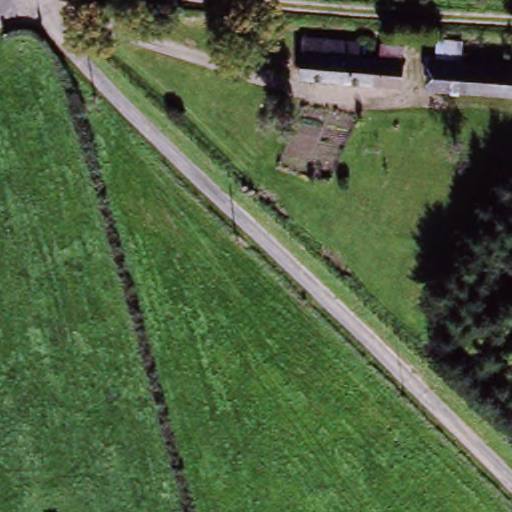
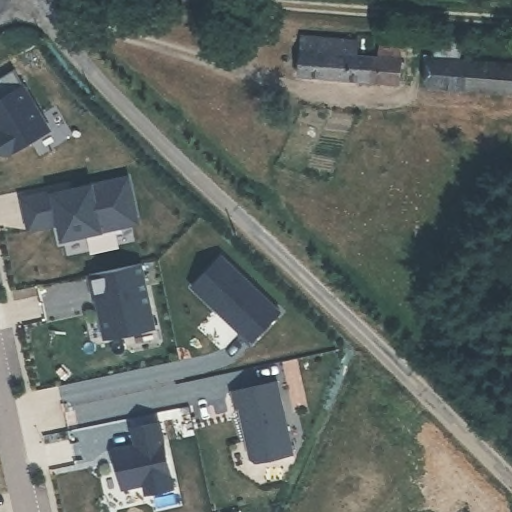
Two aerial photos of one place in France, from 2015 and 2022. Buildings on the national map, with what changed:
unchanged [(300,75),(305,38),(356,43),(355,55),(404,60),(402,85),(300,75)]
unchanged [(423,66),(424,54),(432,55),(433,60),(512,66),(512,92),(430,86),(432,66),(423,66)]
new [(49,129),(9,153),(0,151),(0,98),(22,85),(49,129)]
new [(52,191),(53,192),(127,177),(135,218),(132,224),(62,239),(58,223),(27,230),(20,198),(52,191)]
new [(219,254),(277,312),(244,344),(232,332),(237,328),(217,307),(214,310),(189,283),(219,254)]
new [(140,263),(154,327),(104,338),(99,310),(101,310),(98,296),(95,297),(90,274),(140,263)]
new [(276,380),(292,453),(255,461),(250,457),(238,406),(235,407),(231,390),(276,380)]
new [(134,427),(159,422),(173,486),(146,492),(144,482),(122,487),(115,455),(114,450),(121,448),(137,445),(134,427)]

